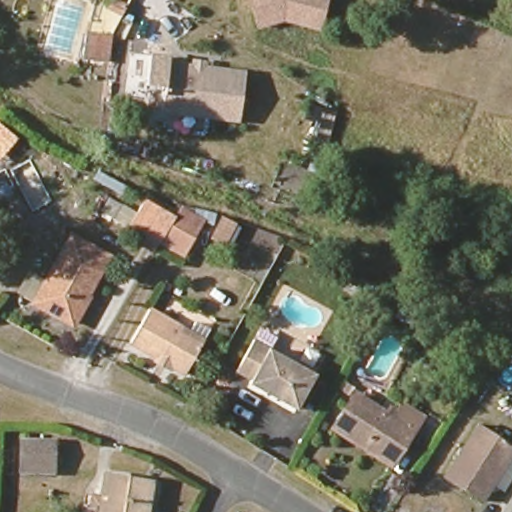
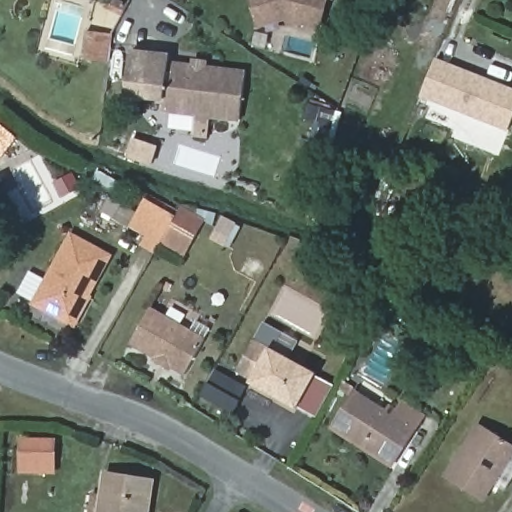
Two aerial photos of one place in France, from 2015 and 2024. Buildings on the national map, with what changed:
unchanged [(280,20),(255,27),(247,0),(328,0),(319,31),(280,20)]
unchanged [(85,56),(91,30),(105,33),(105,36),(100,61),(85,56)]
unchanged [(239,122),(160,113),(162,86),(144,85),(147,51),(167,53),(166,60),(189,62),(190,58),(208,59),(207,64),(245,68),(239,122)]
new [(421,98),(436,58),(512,88),(512,122),(508,132),(421,98)]
new [(16,139),(4,154),(0,158),(0,125),(16,139)]
unchanged [(165,242),(130,223),(143,200),(177,219),(174,225),(194,236),(184,253),(165,242)]
unchanged [(240,226),(226,250),(206,238),(220,214),(240,226)]
unchanged [(37,305),(76,235),(109,253),(71,324),(37,305)]
unchanged [(205,345),(185,378),(130,346),(150,312),(205,345)]
unchanged [(251,387),(254,380),(241,372),(261,339),(318,376),(295,414),(251,387)]
unchanged [(336,431),(356,397),(392,421),(403,407),(426,425),(397,470),(336,431)]
unchanged [(483,429),(512,447),(512,460),(482,507),(448,485),(483,429)]
unchanged [(20,470),(23,434),(62,438),(60,474),(20,470)]
unchanged [(105,473),(149,484),(144,512),(98,512),(105,473)]

